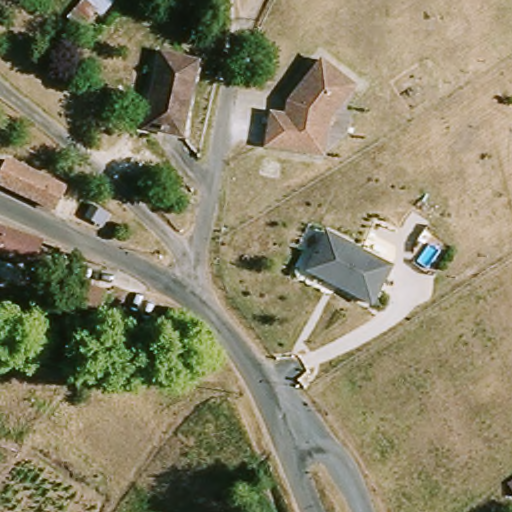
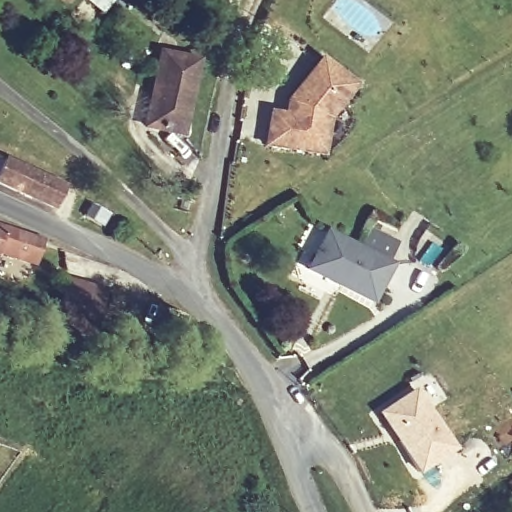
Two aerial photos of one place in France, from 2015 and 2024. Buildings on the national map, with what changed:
unchanged [(65,18),(80,0),(108,0),(111,3),(83,32),(65,18)]
unchanged [(285,117),(289,118),(292,107),(286,103),(320,62),(355,88),(330,118),(327,124),(321,157),(265,147),(268,129),(270,114),(285,117)]
unchanged [(152,120),(163,68),(196,75),(185,127),(152,120)]
unchanged [(37,196),(35,200),(0,187),(0,182),(7,160),(55,178),(45,199),(37,196)]
unchanged [(90,194),(102,203),(96,211),(84,202),(90,194)]
unchanged [(357,245),(367,225),(399,242),(389,265),(370,303),(304,270),(324,231),(357,245)]
unchanged [(0,260),(0,233),(35,247),(27,271),(0,260)]
unchanged [(106,292),(101,310),(70,302),(74,283),(106,292)]
unchanged [(188,318),(175,345),(156,336),(170,309),(188,318)]
new [(413,394),(450,450),(417,473),(397,443),(403,439),(399,433),(393,431),(382,414),(413,394)]
unchanged [(512,482),(512,492),(506,485),(512,482)]

